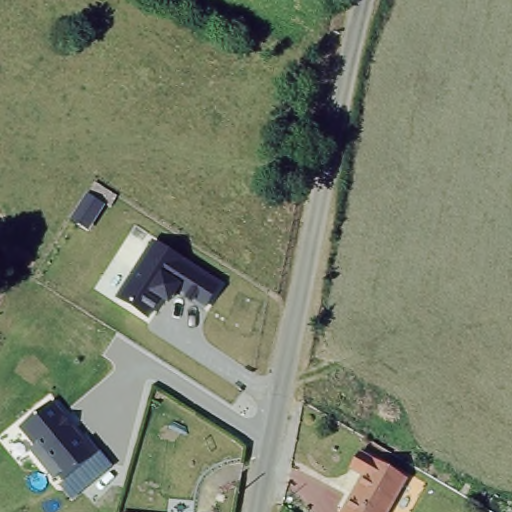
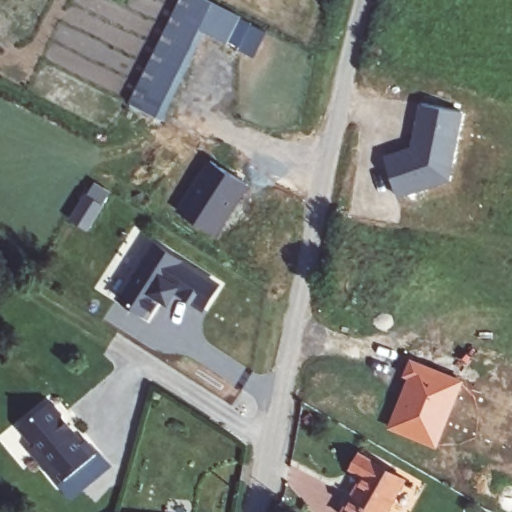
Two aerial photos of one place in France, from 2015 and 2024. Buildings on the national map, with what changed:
new [(209,0),(242,16),(229,43),(205,31),(162,118),(130,102),(179,0),(209,0)]
new [(384,156),(411,145),(419,104),(464,113),(450,180),(400,198),(384,156)]
new [(209,159),(248,185),(217,235),(177,209),(209,159)]
new [(70,220),(94,181),(109,191),(107,195),(110,197),(89,232),(70,220)]
unchanged [(152,240),(223,282),(206,311),(178,294),(172,303),(162,300),(148,319),(115,297),(152,240)]
new [(407,379),(402,376),(410,357),(465,380),(437,449),(387,428),(407,379)]
unchanged [(52,400),(98,451),(110,468),(72,500),(59,485),(64,482),(58,475),(52,481),(29,448),(32,445),(19,429),(52,400)]
unchanged [(403,476),(384,512),(343,512),(340,510),(360,471),(350,465),(359,450),(403,476)]
unchanged [(120,511),(124,512),(120,512),(120,511)]

